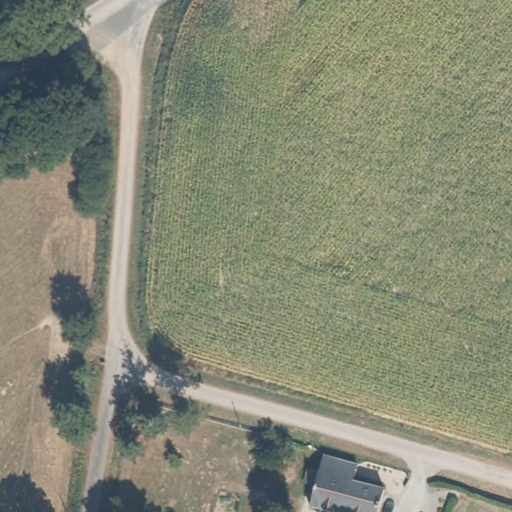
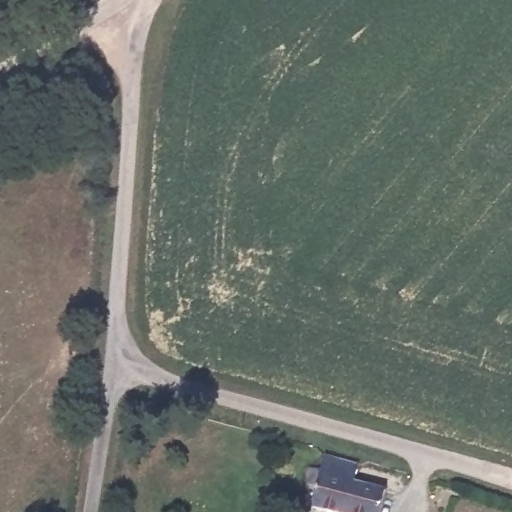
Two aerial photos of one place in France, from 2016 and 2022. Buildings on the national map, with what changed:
unchanged [(357,482),(349,512),(319,512),(312,511),(316,498),(300,493),(308,473),(321,477),(325,461),(362,472),(357,482)]
unchanged [(388,490),(382,512),(349,512),(357,482),(388,490)]

